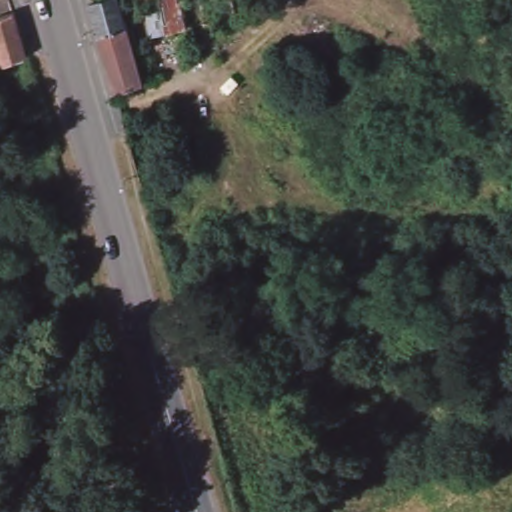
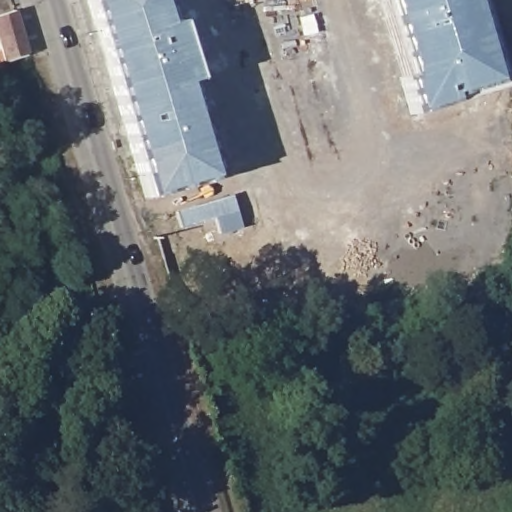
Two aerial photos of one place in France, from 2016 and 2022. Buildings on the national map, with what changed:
demolished [(141,79),(112,87),(86,0),(118,0),(141,79)]
new [(172,24),(180,21),(197,80),(188,82),(216,179),(148,199),(90,0),(165,0),(172,24)]
new [(512,65),(512,80),(469,92),(471,98),(428,111),(416,74),(422,72),(401,0),(493,0),(512,65)]
unchanged [(13,12),(27,54),(0,62),(0,16),(13,12)]
new [(235,196),(244,228),(222,235),(217,218),(184,228),(179,212),(235,196)]
unchanged [(16,229),(52,245),(44,265),(7,249),(16,229)]
unchanged [(155,498),(159,512),(144,512),(141,502),(155,498)]

